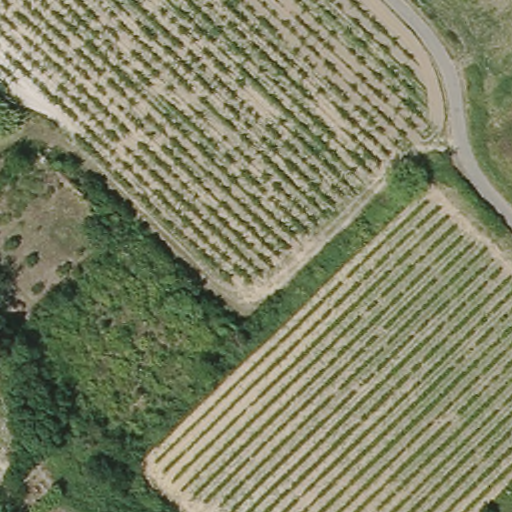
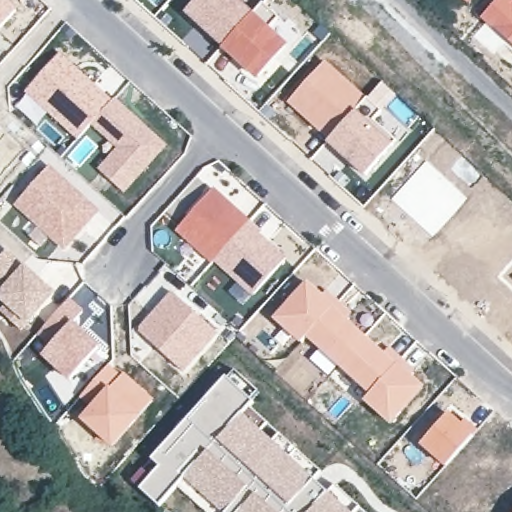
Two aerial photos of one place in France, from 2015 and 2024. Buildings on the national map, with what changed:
new [(0,26),(0,0),(10,0),(17,6),(0,26)]
new [(241,0),(254,12),(220,48),(215,44),(195,25),(184,14),(197,0),(241,0)]
new [(463,0),(469,0),(467,3),(463,0)]
new [(512,0),(512,48),(485,22),(480,17),(495,0),(512,0)]
new [(254,12),(262,4),(277,18),(270,25),(290,45),(256,81),(220,48),(254,12)]
new [(62,53),(113,99),(91,125),(76,139),(47,114),(26,94),(24,92),(62,53)]
new [(327,61),(367,98),(358,108),(326,140),(287,101),(327,61)]
new [(113,99),(115,96),(169,144),(124,194),(95,167),(113,147),(91,125),(113,99)]
new [(326,140),(358,108),(396,142),(363,178),(343,160),(341,162),(325,143),(325,142),(326,140)]
new [(25,151),(0,177),(0,131),(2,129),(25,151)]
new [(470,200),(435,239),(393,201),(427,164),(470,200)]
new [(50,166),(102,211),(63,252),(47,238),(37,247),(26,234),(34,226),(13,205),(50,166)]
new [(213,185),(252,219),(287,256),(242,304),(227,290),(235,282),(173,230),(213,185)]
new [(0,312),(0,308),(3,304),(0,301),(0,255),(7,248),(22,262),(55,292),(20,330),(0,312)]
new [(500,281),(512,269),(512,292),(500,281)]
new [(308,280),(323,294),(327,290),(352,312),(348,317),(384,351),(390,345),(415,371),(413,373),(425,386),(390,425),(363,400),(368,394),(337,365),(318,349),(306,337),(300,343),(291,336),(283,329),(273,319),(308,280)]
new [(170,289),(220,333),(182,374),(135,330),(170,289)]
new [(33,336),(70,296),(83,309),(73,320),(101,345),(68,381),(52,367),(39,354),(45,347),(33,336)]
new [(109,362),(154,398),(112,448),(78,417),(88,406),(78,396),(109,362)]
new [(249,406),(365,512),(206,512),(178,486),(160,506),(140,488),(132,481),(150,459),(227,377),(235,370),(260,391),(249,406)]
new [(452,411),(462,419),(463,417),(478,429),(445,466),(422,444),(452,411)]

